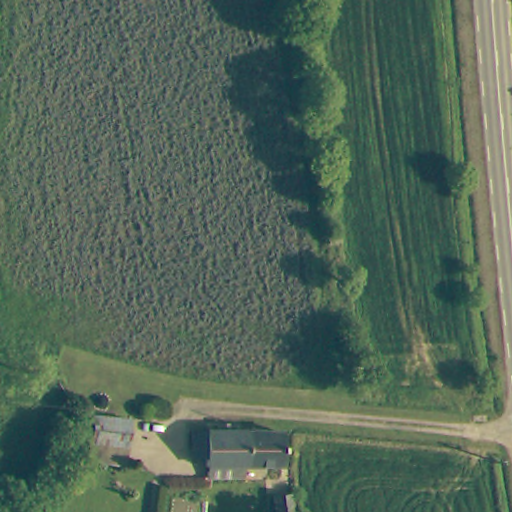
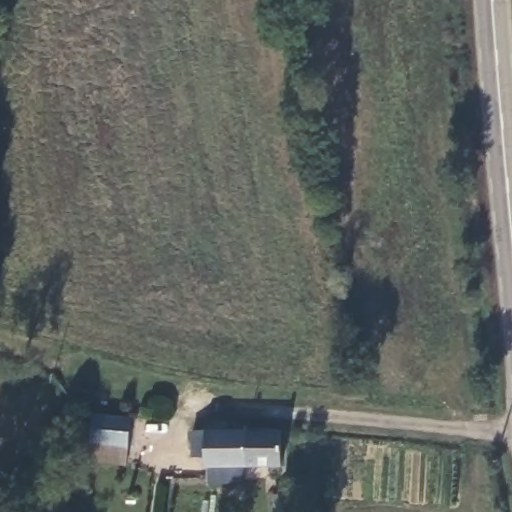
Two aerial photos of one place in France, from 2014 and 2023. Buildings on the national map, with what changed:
unchanged [(100,410),(110,413),(113,404),(132,409),(122,451),(90,443),(100,410)]
unchanged [(250,463),(240,462),(240,474),(212,473),(212,461),(205,461),(205,450),(197,450),(197,439),(199,425),(211,426),(251,428),(250,463)]
unchanged [(285,429),(285,466),(250,463),(251,428),(285,429)]
unchanged [(301,512),(282,512),(280,499),(298,496),(301,512)]

